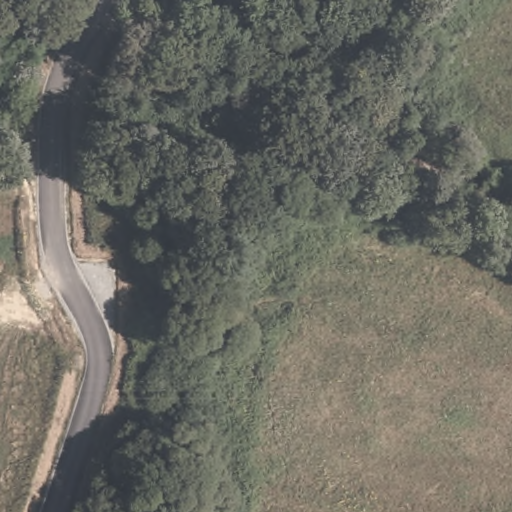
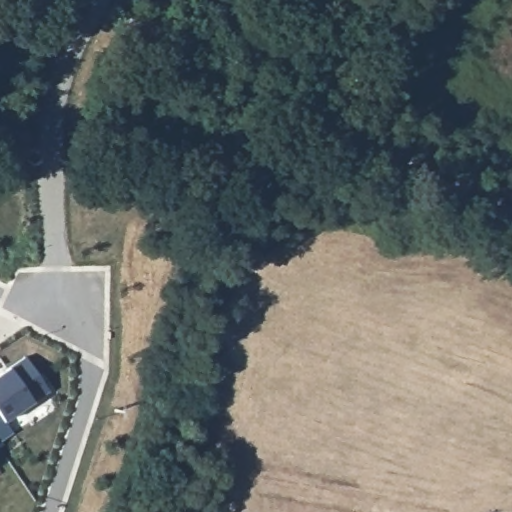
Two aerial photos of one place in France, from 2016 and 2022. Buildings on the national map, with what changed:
unchanged [(460,125),(459,128),(474,136),(469,147),(452,140),(432,126),(441,114),(460,125)]
new [(26,357),(50,391),(5,422),(0,415),(0,375),(26,357)]

